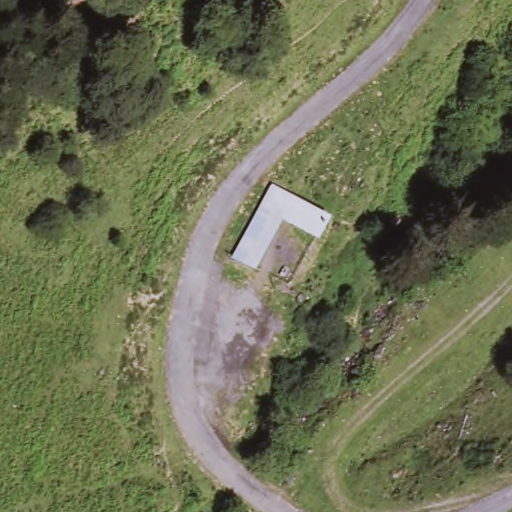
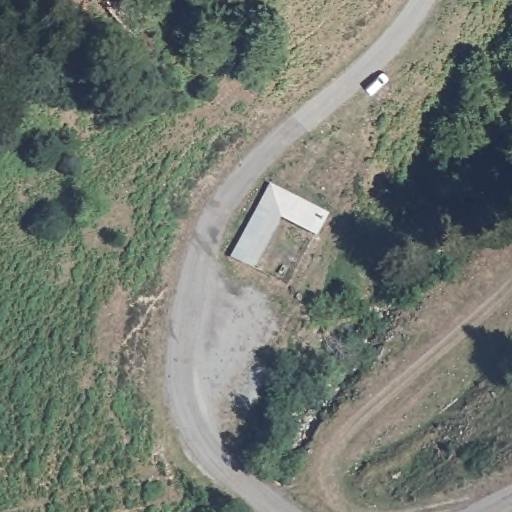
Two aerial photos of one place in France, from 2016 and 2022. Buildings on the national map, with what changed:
unchanged [(327,214),(314,240),(278,220),(264,249),(252,273),(228,257),(270,182),(327,214)]

